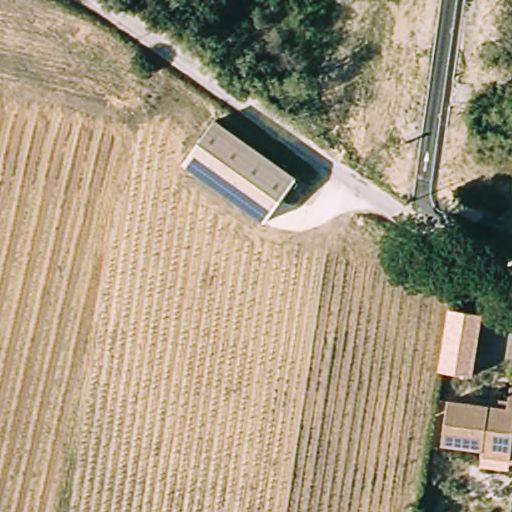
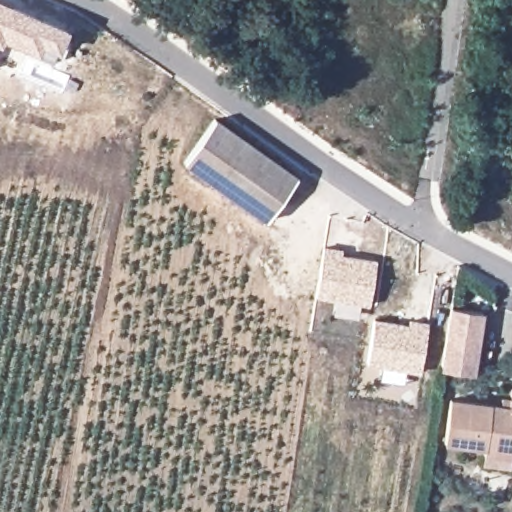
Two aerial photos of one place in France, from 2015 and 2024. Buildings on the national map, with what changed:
new [(2,0),(68,28),(58,51),(54,50),(50,60),(37,53),(3,38),(0,45),(0,0),(2,0)]
unchanged [(214,119),(297,176),(268,219),(184,162),(214,119)]
new [(342,248),(341,254),(376,259),(369,305),(315,296),(323,246),(342,248)]
unchanged [(451,304),(483,309),(475,369),(443,365),(451,304)]
new [(408,324),(408,319),(428,321),(419,373),(366,363),(373,318),(408,324)]
unchanged [(485,447),(446,442),(452,400),(512,409),(512,459),(484,455),(485,447)]

